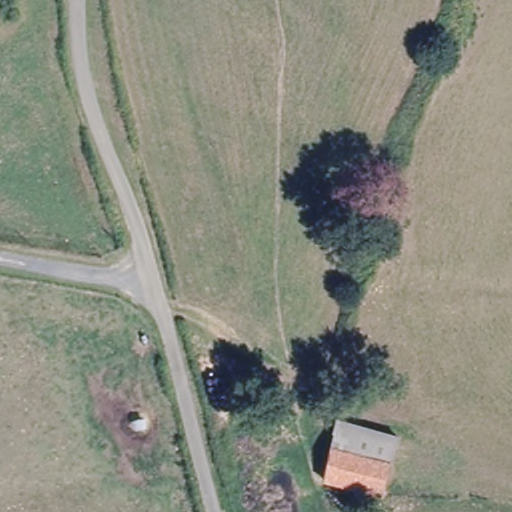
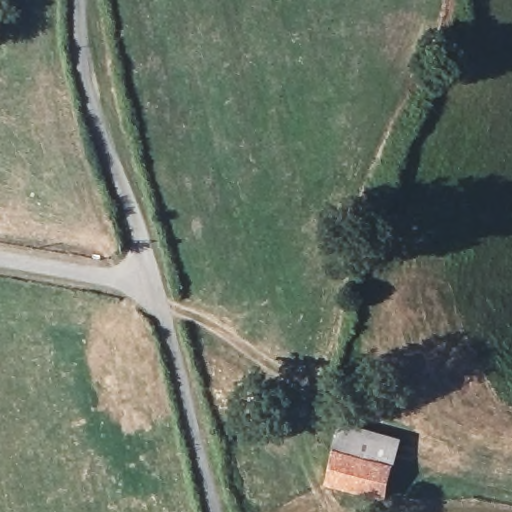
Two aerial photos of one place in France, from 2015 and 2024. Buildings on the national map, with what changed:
unchanged [(398,445),(388,476),(328,465),(337,429),(398,445)]

